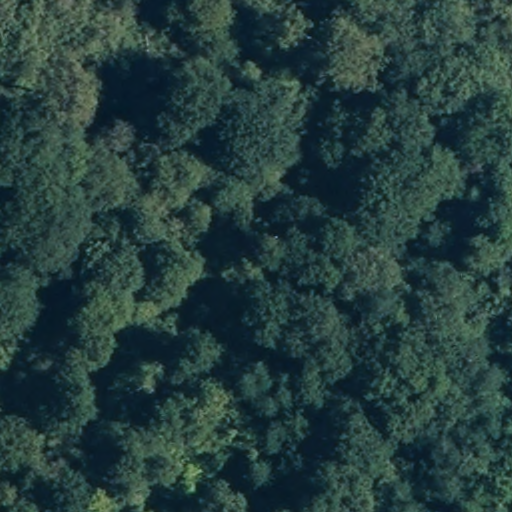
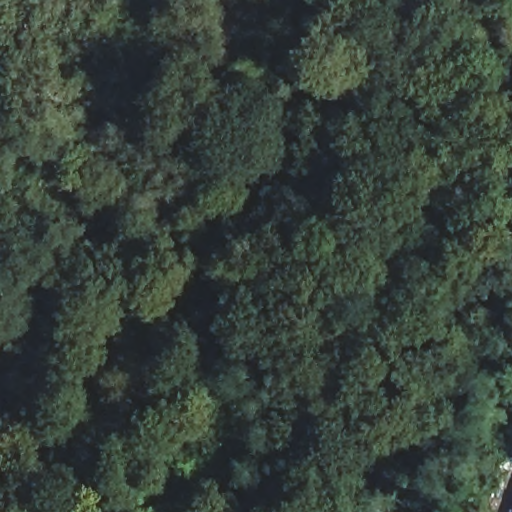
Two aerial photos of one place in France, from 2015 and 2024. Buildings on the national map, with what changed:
unchanged [(512,487),(512,512),(486,512),(493,483),(512,487)]

